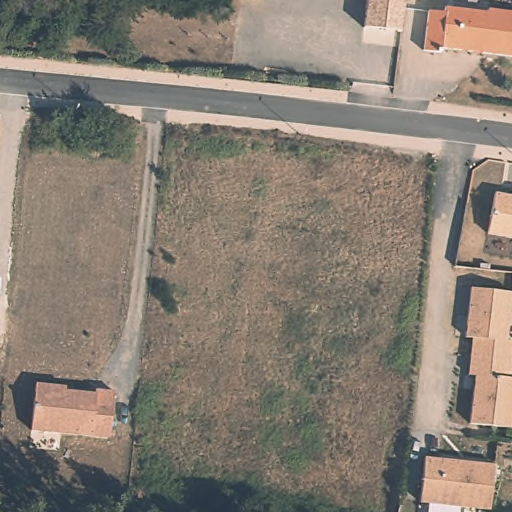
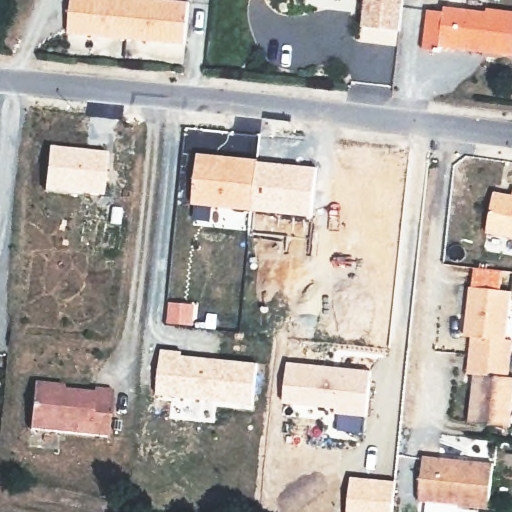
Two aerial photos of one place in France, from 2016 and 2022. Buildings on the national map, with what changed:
new [(159,0),(190,3),(185,45),(69,35),(71,0),(159,0)]
unchanged [(365,28),(369,0),(406,0),(402,32),(365,28)]
unchanged [(447,12),(449,6),(490,12),(491,3),(512,6),(512,56),(443,47),(443,52),(426,50),(431,9),(447,12)]
new [(197,154),(258,160),(254,211),(192,205),(197,154)]
unchanged [(494,194),(512,197),(512,239),(485,234),(494,194)]
unchanged [(512,292),(512,322),(510,340),(512,341),(512,428),(471,423),(478,375),(471,374),(476,338),(468,336),(475,287),(512,292)]
new [(161,349),(183,352),(182,356),(256,364),(252,405),(156,395),(161,349)]
new [(288,362),(372,371),(368,417),(335,415),(335,409),(283,404),(288,362)]
unchanged [(64,383),(64,387),(94,390),(95,386),(114,388),(109,436),(30,427),(35,380),(64,383)]
unchanged [(492,464),(487,509),(417,502),(422,457),(492,464)]

